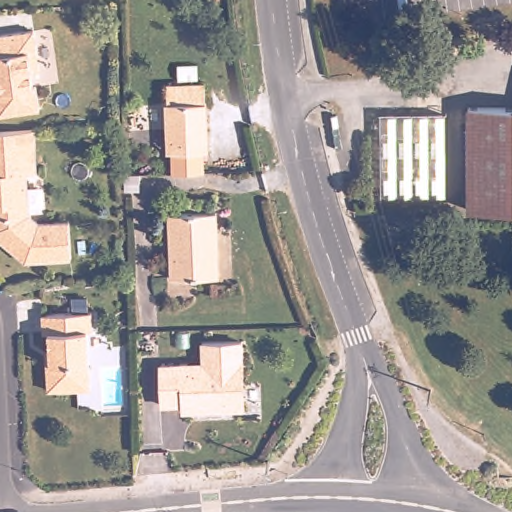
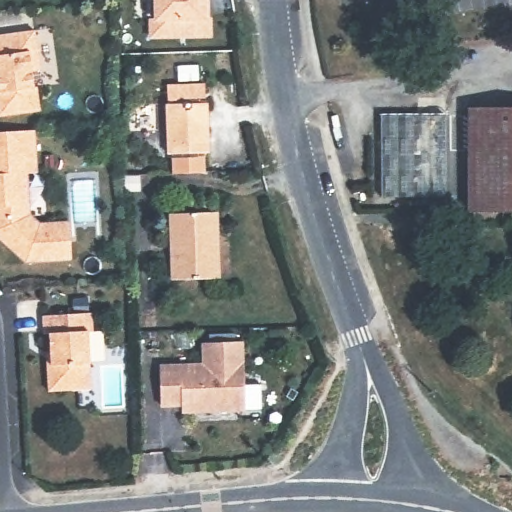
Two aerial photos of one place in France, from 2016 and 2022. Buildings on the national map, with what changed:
new [(145,19),(152,19),(151,0),(206,0),(207,20),(210,37),(146,39),(145,19)]
unchanged [(37,87),(40,110),(0,116),(0,35),(35,30),(40,70),(32,71),(34,87),(37,87)]
unchanged [(205,103),(206,103),(207,152),(203,153),(204,172),(173,173),(172,154),(168,154),(166,104),(167,105),(167,87),(205,85),(205,103)]
unchanged [(473,205),(473,103),(512,103),(512,205),(473,205)]
unchanged [(452,191),(387,192),(385,112),(450,110),(452,191)]
unchanged [(29,215),(39,224),(70,222),(72,258),(26,262),(0,238),(0,132),(34,130),(37,173),(27,174),(29,215)]
unchanged [(177,275),(175,209),(221,207),(223,273),(177,275)]
unchanged [(87,331),(91,388),(49,391),(47,363),(51,363),(49,333),(44,334),(42,315),(92,312),(92,331),(87,331)]
unchanged [(245,340),(247,411),(182,413),(181,407),(161,407),(160,363),(202,362),(202,342),(245,340)]

